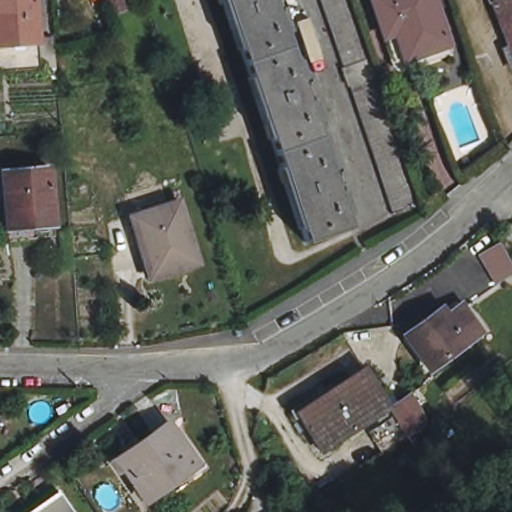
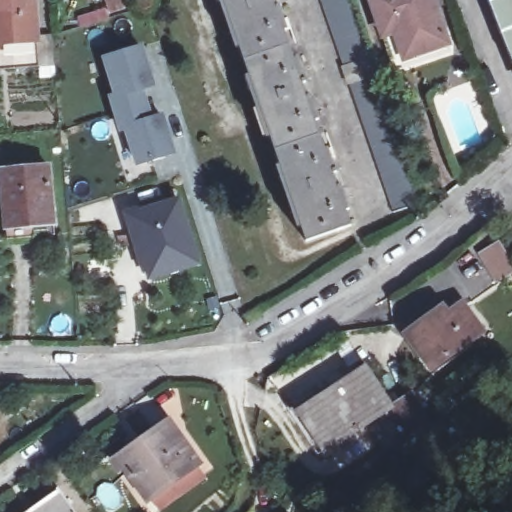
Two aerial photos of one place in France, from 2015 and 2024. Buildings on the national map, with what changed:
unchanged [(33,0),(35,21),(52,20),(55,51),(0,54),(0,0),(33,0)]
unchanged [(144,0),(146,4),(115,14),(110,0),(144,0)]
unchanged [(286,27),(301,76),(306,74),(321,115),(316,116),(334,165),(338,163),(352,205),(348,206),(356,230),(311,246),(226,0),(281,0),(289,26),(286,27)]
unchanged [(349,86),(346,88),(340,69),(342,69),(320,0),(351,0),(371,59),(377,78),(420,206),(392,215),(349,86)]
unchanged [(418,62),(412,63),(409,61),(406,56),(399,39),(388,42),(374,3),(383,0),(434,0),(449,41),(452,51),(436,56),(418,62)]
unchanged [(503,0),(494,4),(493,0),(503,0)]
unchanged [(503,0),(512,0),(512,49),(494,4),(503,0)]
new [(140,47),(152,85),(152,86),(141,89),(146,105),(116,114),(111,97),(116,96),(104,58),(140,47)]
new [(146,105),(150,120),(161,116),(173,153),(138,163),(126,128),(121,130),(116,114),(146,105)]
unchanged [(18,239),(16,227),(11,171),(58,166),(63,224),(44,225),(44,236),(18,239)]
unchanged [(139,215),(184,201),(203,263),(155,278),(148,253),(151,252),(139,215)]
new [(512,263),(512,271),(497,281),(481,255),(499,244),(512,263)]
unchanged [(458,323),(474,311),(492,335),(439,372),(417,341),(453,315),(458,323)]
unchanged [(381,432),(389,427),(384,418),(333,451),(311,415),(327,404),(324,401),(376,367),(386,381),(402,406),(421,393),(429,405),(438,424),(421,434),(394,451),(381,432)]
unchanged [(203,465),(153,498),(137,475),(125,459),(158,437),(176,425),(203,465)]
unchanged [(85,512),(54,512),(74,498),(85,512)]

